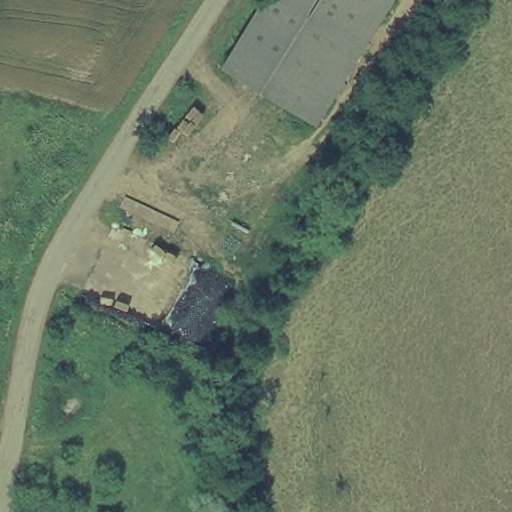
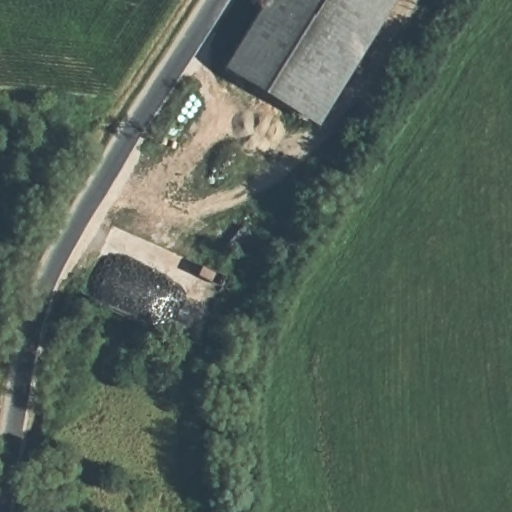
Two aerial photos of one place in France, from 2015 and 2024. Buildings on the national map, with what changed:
unchanged [(271,0),(397,0),(320,126),(230,67),(271,0)]

